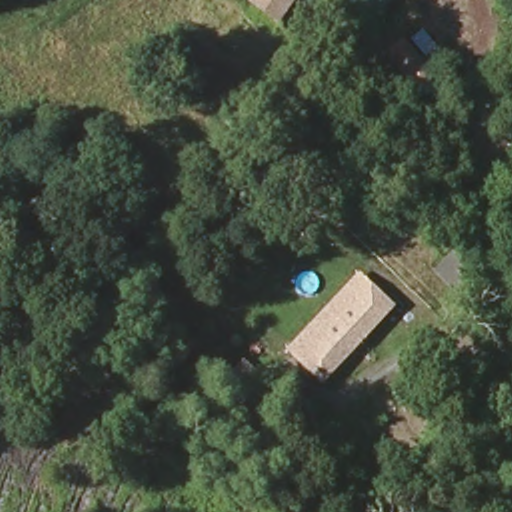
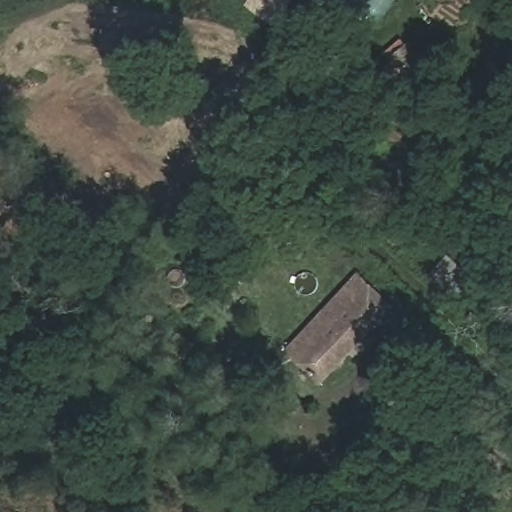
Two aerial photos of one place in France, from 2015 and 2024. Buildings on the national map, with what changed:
unchanged [(296,0),(279,25),(255,7),(259,0),(296,0)]
unchanged [(323,382),(290,352),(361,276),(394,307),(323,382)]
unchanged [(193,367),(183,382),(166,370),(185,343),(201,356),(193,367)]
unchanged [(242,420),(219,399),(235,380),(239,382),(249,372),(265,386),(256,397),(259,400),(242,420)]

